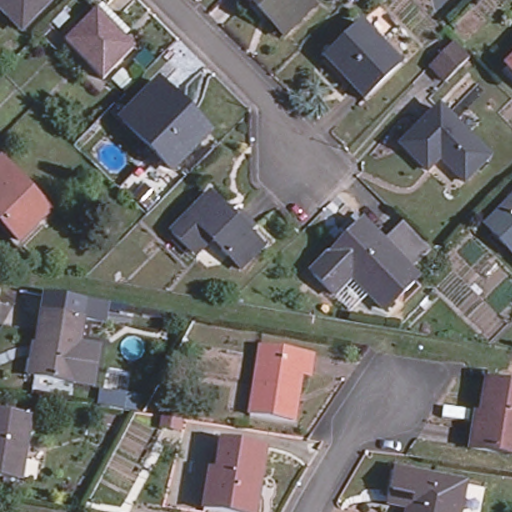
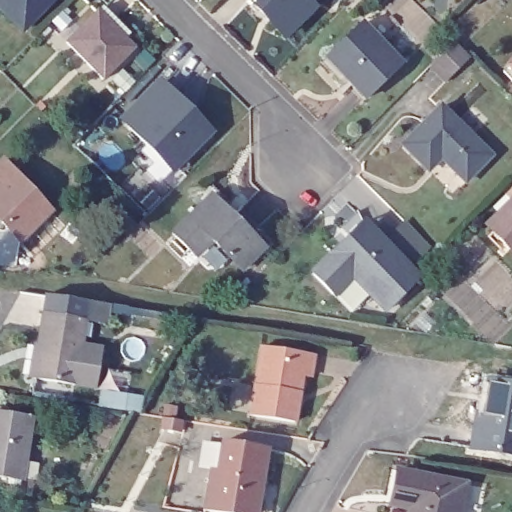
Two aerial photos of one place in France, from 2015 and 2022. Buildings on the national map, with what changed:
unchanged [(0,5),(0,0),(49,0),(22,27),(0,5)]
unchanged [(311,0),(315,5),(286,35),(254,3),(251,1),(250,0),(311,0)]
unchanged [(70,37),(100,8),(136,44),(106,74),(70,37)]
unchanged [(402,64),(367,100),(327,61),(363,25),(402,64)]
unchanged [(457,45),(472,61),(449,84),(433,69),(457,45)]
unchanged [(502,71),(512,62),(512,81),(502,71)]
unchanged [(185,112),(182,116),(206,141),(173,173),(126,124),(162,89),(185,112)]
unchanged [(490,157),(466,181),(442,157),(428,171),(402,146),(440,107),(490,157)]
unchanged [(22,247),(0,226),(0,173),(5,167),(53,216),(22,247)]
unchanged [(172,232),(208,197),(227,216),(233,210),(250,228),(245,233),(256,244),(232,267),(205,239),(192,252),(172,232)]
unchanged [(512,202),(512,253),(487,227),(512,202)]
unchanged [(383,311),(350,277),(332,294),(310,272),(345,238),(357,226),(367,235),(380,249),(403,272),(413,282),(383,311)]
unchanged [(402,227),(425,250),(403,272),(380,249),(402,227)]
unchanged [(37,295),(75,301),(99,305),(96,324),(76,321),(34,315),(37,295)]
unchanged [(86,387),(66,384),(27,378),(21,377),(25,347),(29,347),(34,315),(76,321),(72,346),(92,349),(86,387)]
unchanged [(317,357),(313,378),(305,376),(297,422),(254,415),(265,348),(317,357)]
unchanged [(481,453),(490,386),(512,389),(512,457),(481,453)]
unchanged [(0,481),(0,419),(32,424),(24,485),(0,481)]
unchanged [(212,475),(219,476),(224,447),(267,454),(262,493),(258,512),(207,512),(212,475)]
unchanged [(474,482),(468,508),(457,506),(456,512),(406,512),(408,501),(388,497),(390,488),(395,465),(463,480),(474,482)]

